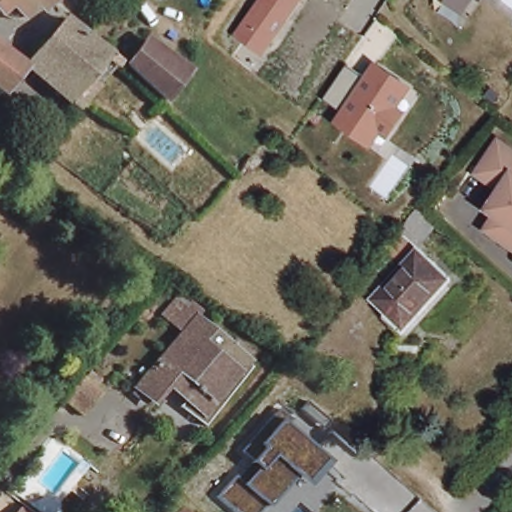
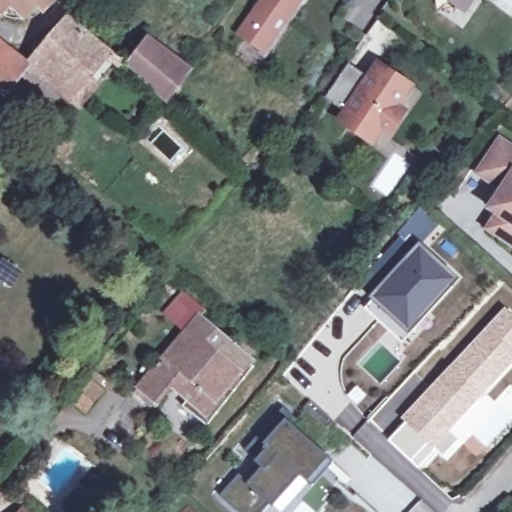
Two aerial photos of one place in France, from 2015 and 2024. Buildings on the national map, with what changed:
unchanged [(2,5),(0,3),(0,0),(7,0),(2,5)]
unchanged [(17,0),(35,0),(27,8),(17,0)]
unchanged [(265,55),(235,34),(258,0),(302,0),(265,55)]
unchanged [(457,11),(442,0),(466,0),(457,11)]
unchanged [(485,1),(484,0),(485,0),(485,1)]
unchanged [(70,110),(60,103),(20,69),(15,74),(12,71),(0,85),(0,58),(15,70),(55,24),(98,59),(107,67),(70,110)]
unchanged [(172,76),(174,77),(151,108),(148,105),(114,73),(135,47),(172,76)]
unchanged [(417,87),(402,107),(410,111),(392,139),(383,135),(373,148),(335,122),(377,60),(417,87)]
unchanged [(65,136),(49,154),(37,143),(52,125),(65,136)]
unchanged [(495,203),(487,197),(500,177),(477,161),(500,131),(512,139),(512,236),(485,218),(495,203)]
unchanged [(403,343),(355,298),(397,251),(395,246),(417,220),(433,235),(412,260),(448,292),(403,343)]
unchanged [(245,359),(249,364),(200,422),(177,402),(193,382),(177,369),(152,397),(135,383),(183,327),(163,310),(180,289),(202,307),(195,315),(227,343),(233,337),(248,349),(242,356),(245,358),(245,359)]
new [(512,313),(512,364),(451,430),(462,441),(445,459),(435,451),(403,422),(400,418),(505,306),(512,313)]
unchanged [(85,414),(63,396),(82,374),(103,392),(85,414)]
unchanged [(333,463),(311,488),(299,478),(272,508),(268,506),(263,512),(239,512),(222,496),(238,476),(247,484),(262,467),(244,452),(282,409),(295,420),(310,402),(337,426),(317,449),(333,463)]
new [(403,422),(435,451),(418,469),(387,440),(403,422)]
unchanged [(24,512),(17,512),(20,509),(24,512)]

